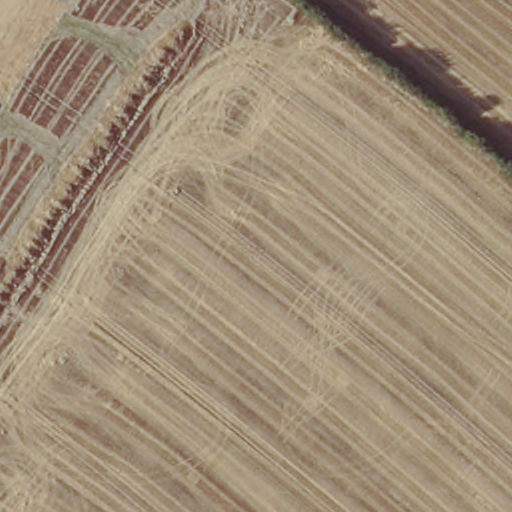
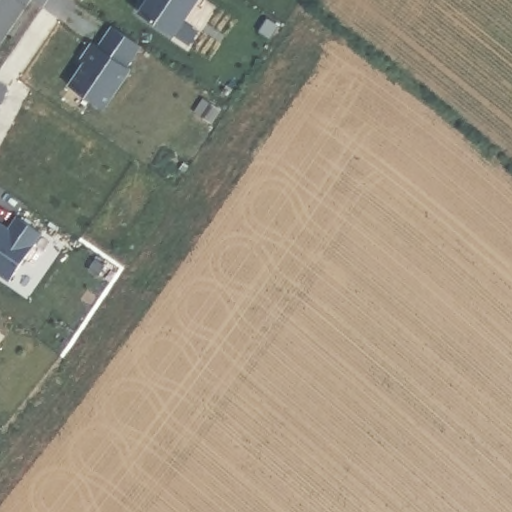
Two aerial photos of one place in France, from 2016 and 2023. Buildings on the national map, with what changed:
new [(200,0),(179,35),(138,9),(144,0),(200,0)]
new [(138,41),(124,62),(128,65),(101,104),(67,81),(84,58),(80,55),(90,39),(96,44),(111,23),(138,41)]
new [(7,229),(16,216),(40,233),(8,281),(0,275),(0,223),(7,229)]

